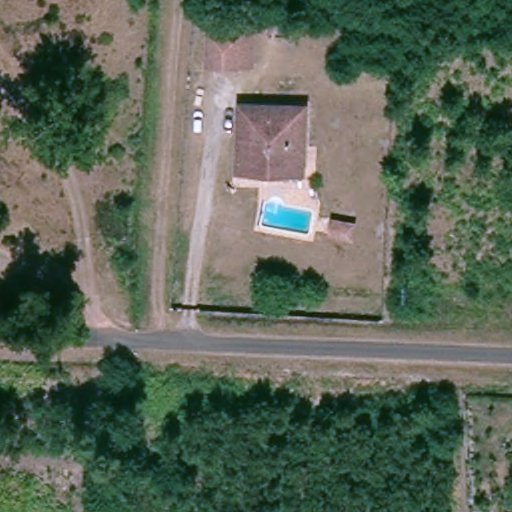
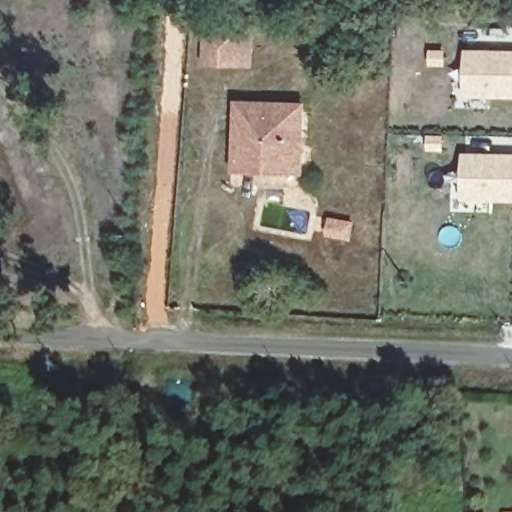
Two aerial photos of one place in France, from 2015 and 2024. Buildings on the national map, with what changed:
unchanged [(246,61),(237,60),(206,59),(205,27),(237,27),(246,27),(246,61)]
new [(512,49),(512,97),(462,96),(464,48),(512,49)]
unchanged [(267,170),(237,166),(239,118),(240,100),(264,101),(306,104),(304,160),(304,170),(267,170)]
new [(512,152),(512,201),(481,198),(481,181),(461,180),(462,151),(512,152)]
unchanged [(337,236),(322,234),(315,232),(317,216),(325,218),(340,220),(337,236)]

